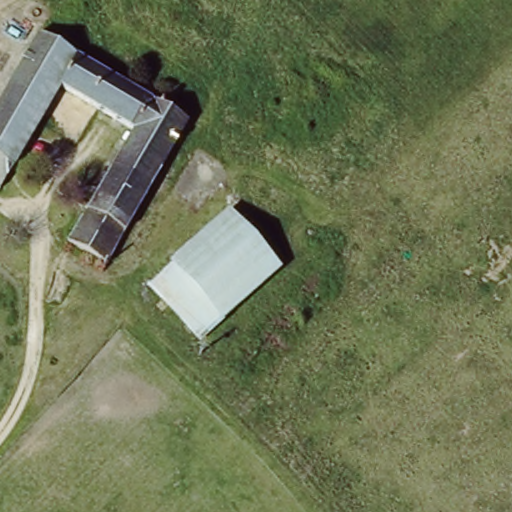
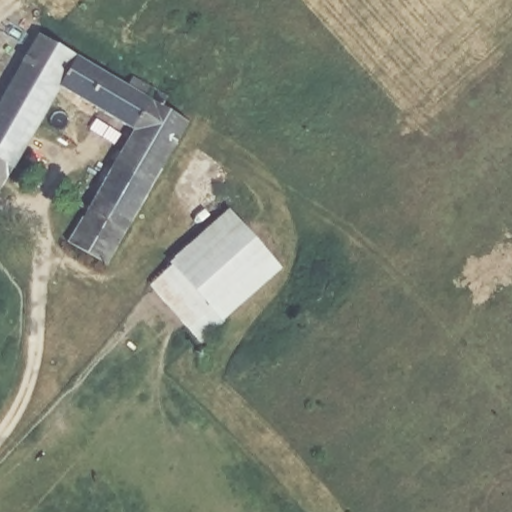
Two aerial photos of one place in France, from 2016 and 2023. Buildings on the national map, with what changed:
unchanged [(68,242),(84,214),(130,132),(54,90),(8,172),(0,186),(0,104),(37,39),(124,88),(129,79),(163,98),(177,106),(191,114),(103,264),(68,242)]
unchanged [(223,317),(213,306),(190,324),(150,280),(229,209),(278,268),(223,317)]

